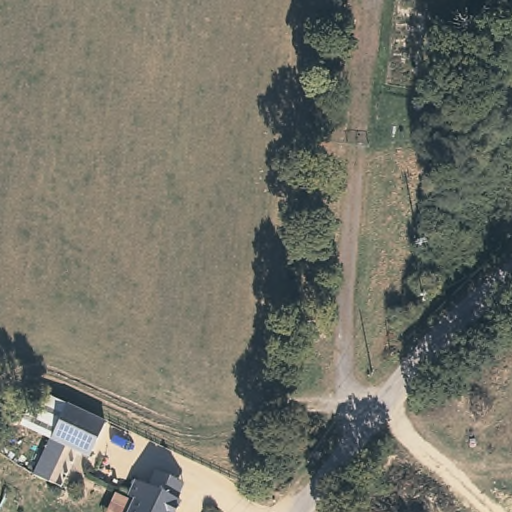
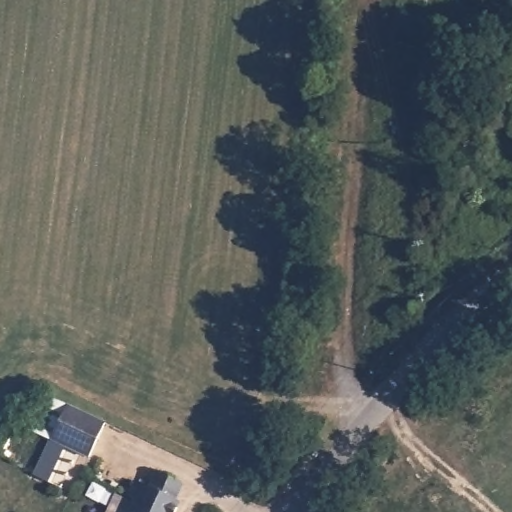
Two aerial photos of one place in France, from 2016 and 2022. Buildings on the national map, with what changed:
unchanged [(40,464),(57,427),(72,393),(111,411),(95,445),(70,434),(53,470),(40,464)]
unchanged [(178,512),(131,512),(137,500),(130,496),(138,481),(151,488),(158,472),(185,485),(177,501),(182,503),(178,512)]

